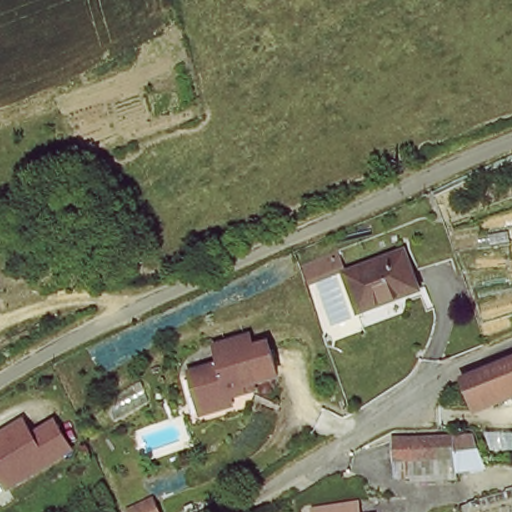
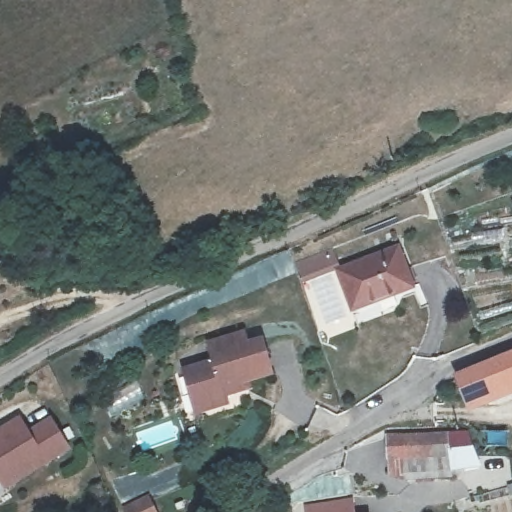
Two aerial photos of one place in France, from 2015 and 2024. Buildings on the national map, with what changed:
unchanged [(418,285),(355,306),(343,269),(405,246),(418,285)]
unchanged [(296,261),(335,249),(343,269),(303,282),(296,261)]
unchanged [(194,413),(189,399),(180,372),(209,363),(205,350),(240,339),(244,350),(259,346),(268,373),(243,382),(246,388),(237,391),(222,396),(225,403),(194,413)]
unchanged [(457,377),(512,352),(512,396),(494,405),(473,413),(457,377)]
unchanged [(23,437),(45,426),(61,457),(5,485),(0,476),(0,431),(16,423),(23,437)]
unchanged [(453,447),(448,460),(455,463),(452,478),(382,466),(385,451),(390,452),(393,435),(423,435),(453,447)]
unchanged [(156,512),(128,512),(128,511),(150,500),(156,512)]
unchanged [(340,501),(348,500),(349,512),(303,512),(303,505),(340,501)]

